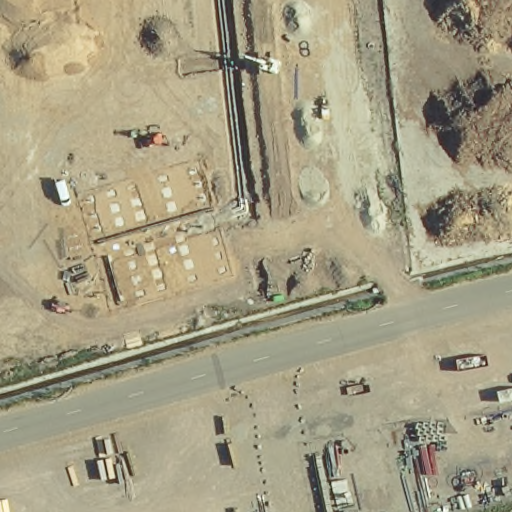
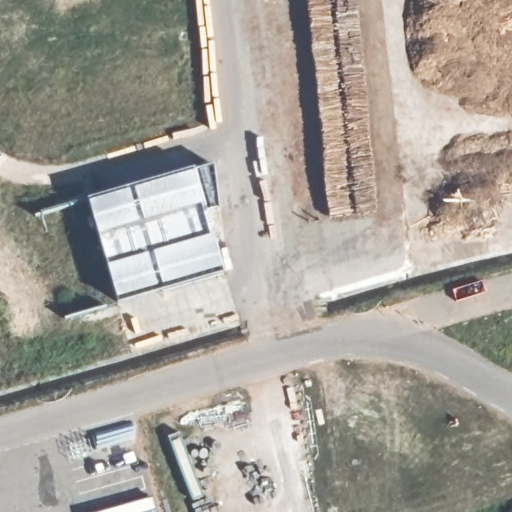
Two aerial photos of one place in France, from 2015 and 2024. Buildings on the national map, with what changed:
new [(209,214),(225,272),(222,273),(117,304),(87,202),(192,173),(212,168),(217,212),(209,214)]

